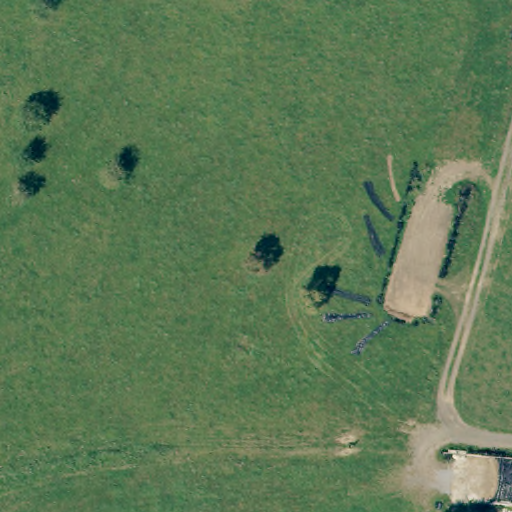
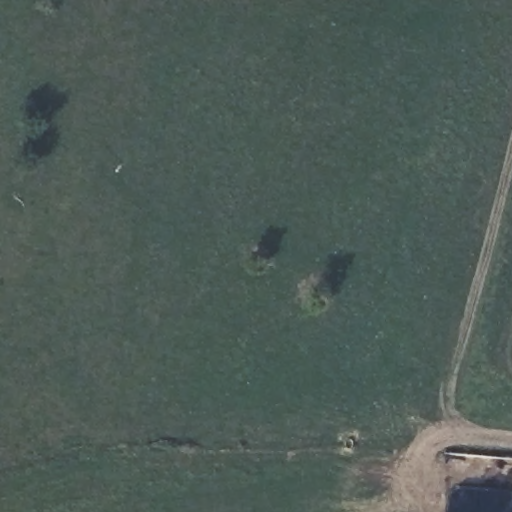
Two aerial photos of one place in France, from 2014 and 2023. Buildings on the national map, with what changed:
[]

